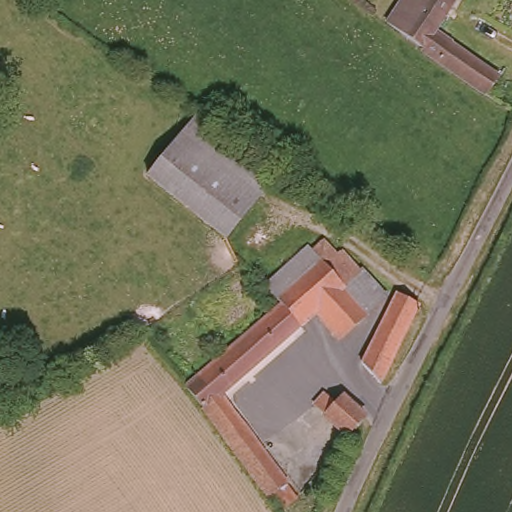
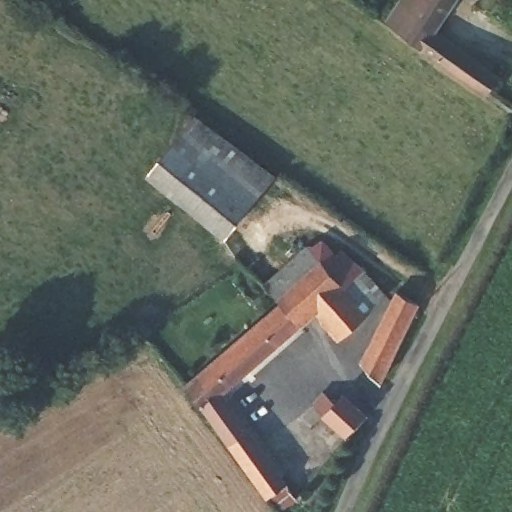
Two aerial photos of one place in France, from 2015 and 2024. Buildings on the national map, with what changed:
unchanged [(483,94),(387,22),(403,0),(455,0),(435,30),(495,79),(483,94)]
unchanged [(193,118),(276,176),(230,239),(185,208),(148,182),(152,176),(193,118)]
unchanged [(277,498),(267,486),(225,436),(219,428),(207,414),(213,406),(197,387),(212,374),(208,368),(217,360),(225,352),(231,357),(285,308),(279,300),(267,288),(308,253),(310,256),(322,247),(334,262),(342,255),(358,275),(362,272),(388,301),(340,343),(316,317),(224,400),(295,482),(277,498)]
unchanged [(380,388),(362,367),(398,299),(420,310),(380,388)]
unchanged [(350,440),(314,412),(323,401),(332,408),(337,401),(364,420),(350,440)]

